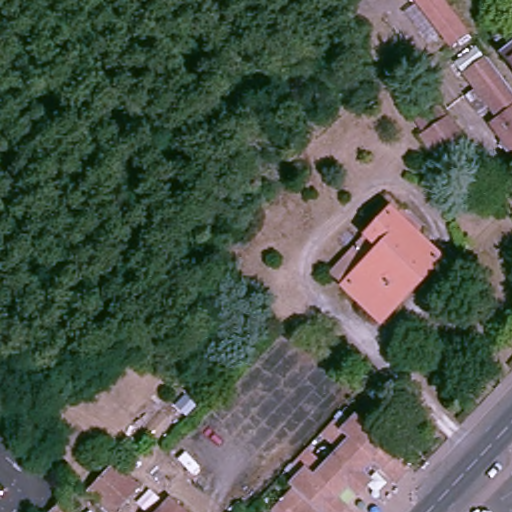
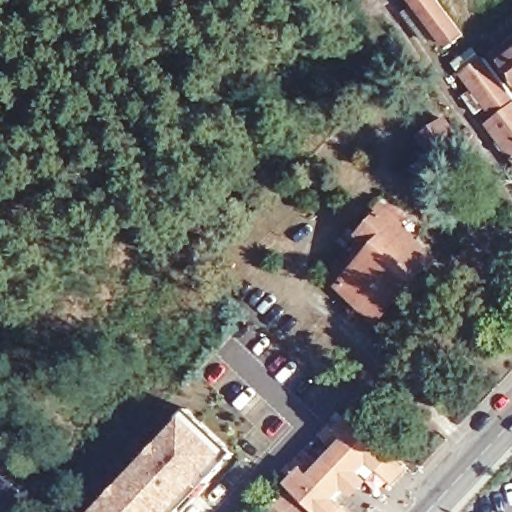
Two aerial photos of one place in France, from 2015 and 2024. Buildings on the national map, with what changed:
unchanged [(418,0),(445,0),(471,35),(454,48),(418,0)]
unchanged [(512,21),(512,43),(506,48),(495,34),(512,21)]
unchanged [(506,48),(512,43),(512,56),(506,48)]
unchanged [(512,84),(512,105),(502,113),(468,68),(489,52),(512,84)]
unchanged [(494,119),(502,113),(512,105),(512,143),(494,119)]
unchanged [(467,150),(441,168),(421,139),(423,137),(414,124),(436,109),(444,122),(446,121),(467,150)]
unchanged [(336,269),(391,211),(439,257),(384,316),(336,269)]
unchanged [(245,352),(232,340),(251,320),(252,321),(264,332),(245,352)]
unchanged [(310,445),(326,460),(339,446),(324,431),(350,403),(416,464),(399,481),(376,459),(367,469),(376,478),(361,494),(351,485),(341,495),(359,512),(326,512),(298,486),(284,473),(310,445)]
new [(178,512),(94,512),(187,416),(190,409),(234,453),(178,512)]
demolished [(118,462),(139,483),(114,509),(93,489),(118,462)]
demolished [(56,494),(35,511),(22,495),(43,478),(56,494)]
unchanged [(326,512),(283,512),(278,507),(298,486),(326,512)]
unchanged [(64,500),(69,506),(73,512),(50,512),(64,500)]
demolished [(168,502),(178,512),(159,512),(168,502)]

